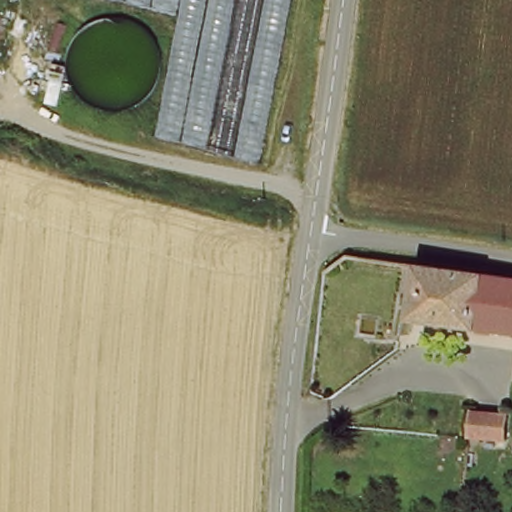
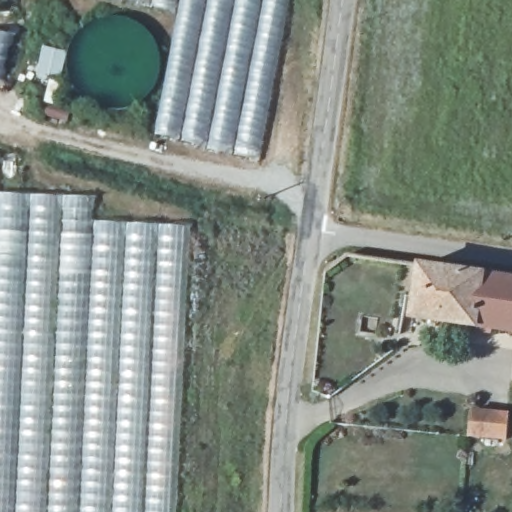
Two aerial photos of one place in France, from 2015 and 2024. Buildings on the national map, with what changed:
unchanged [(260,163),(153,140),(174,16),(109,0),(291,0),(260,163)]
new [(92,197),(91,221),(187,226),(174,512),(0,512),(0,194),(92,197)]
unchanged [(512,272),(512,325),(417,312),(425,259),(481,268),(512,272)]
unchanged [(507,410),(505,431),(479,429),(481,409),(507,410)]

